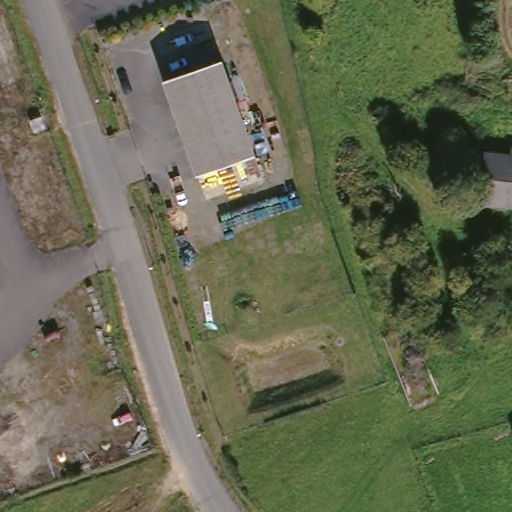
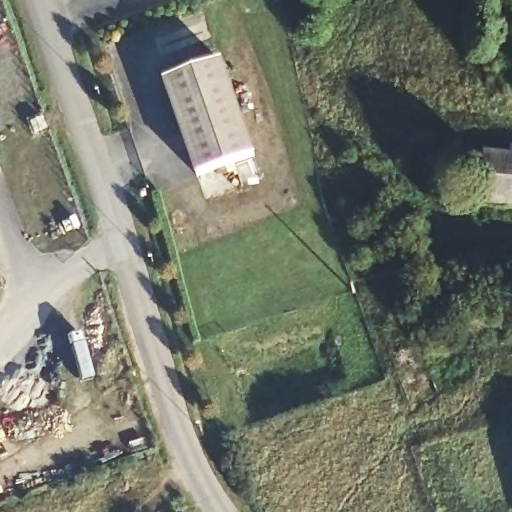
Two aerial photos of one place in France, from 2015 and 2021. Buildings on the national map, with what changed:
unchanged [(216,65),(244,139),(253,160),(200,178),(192,156),(164,84),(216,65)]
unchanged [(479,152),(429,185),(419,169),(469,136),(479,152)]
unchanged [(473,212),(476,160),(502,161),(502,152),(512,153),(512,215),(473,212)]
unchanged [(422,163),(404,173),(399,164),(414,153),(422,163)]
unchanged [(506,289),(506,266),(512,265),(512,288),(506,289)]

